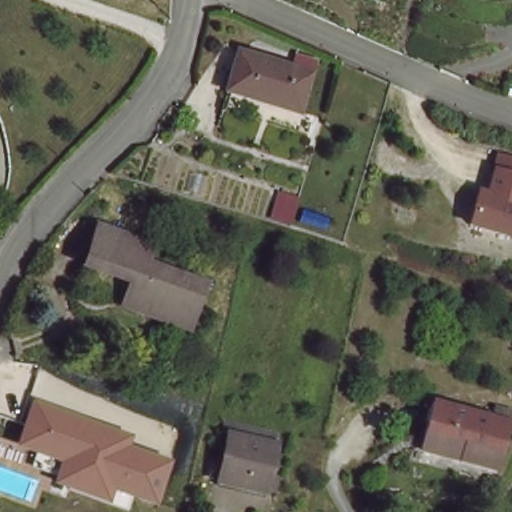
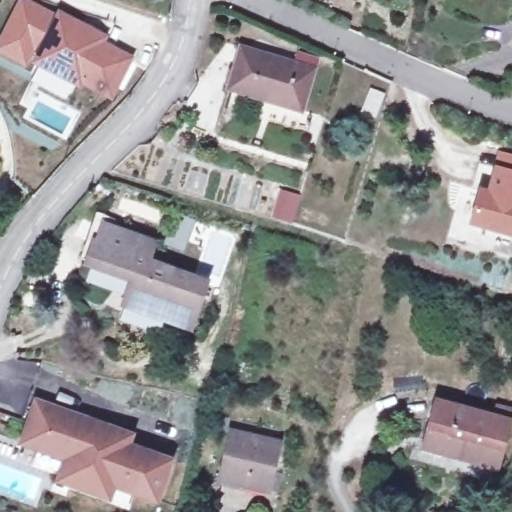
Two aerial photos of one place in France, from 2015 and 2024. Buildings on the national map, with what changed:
new [(127,58),(110,93),(80,80),(79,84),(37,64),(42,52),(32,48),(24,63),(0,51),(0,49),(20,5),(56,21),(57,17),(76,26),(87,31),(100,38),(97,43),(127,58)]
unchanged [(312,72),(300,111),(230,88),(243,50),(312,72)]
unchanged [(482,188),(494,192),(495,186),(493,185),(500,166),(512,171),(512,233),(472,220),(482,188)]
unchanged [(157,243),(151,261),(207,284),(190,329),(127,305),(135,281),(90,263),(106,223),(157,243)]
unchanged [(32,400),(135,434),(130,446),(172,461),(156,506),(114,491),(109,504),(54,484),(60,462),(17,448),(32,400)]
unchanged [(507,431),(494,482),(455,473),(458,461),(420,450),(431,409),(507,431)]
unchanged [(280,447),(268,495),(220,483),(234,435),(280,447)]

